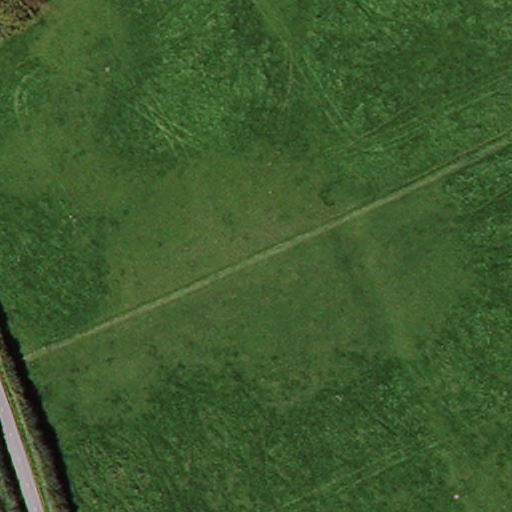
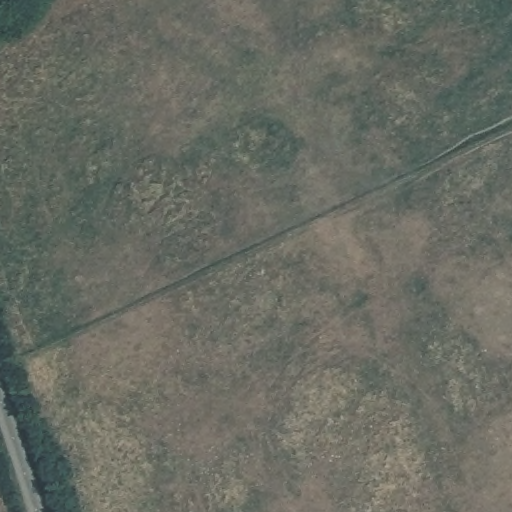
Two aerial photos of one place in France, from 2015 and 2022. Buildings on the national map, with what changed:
[]

